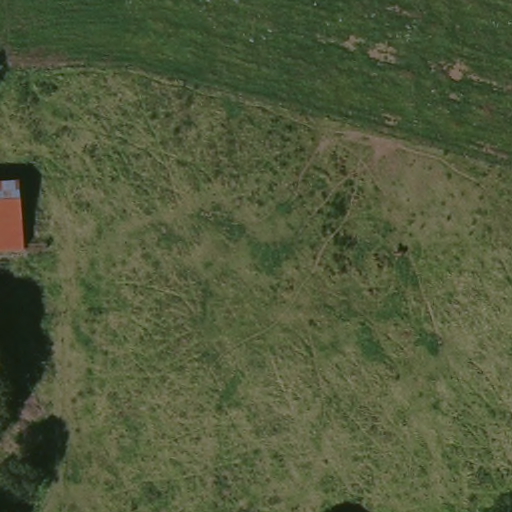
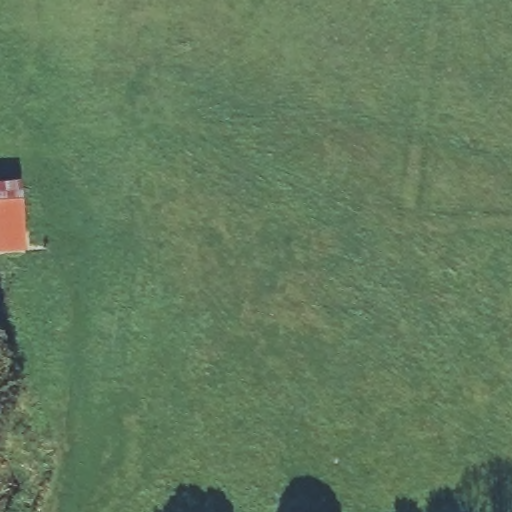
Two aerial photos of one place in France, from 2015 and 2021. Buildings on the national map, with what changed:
unchanged [(18,256),(0,258),(0,191),(13,190),(18,256)]

